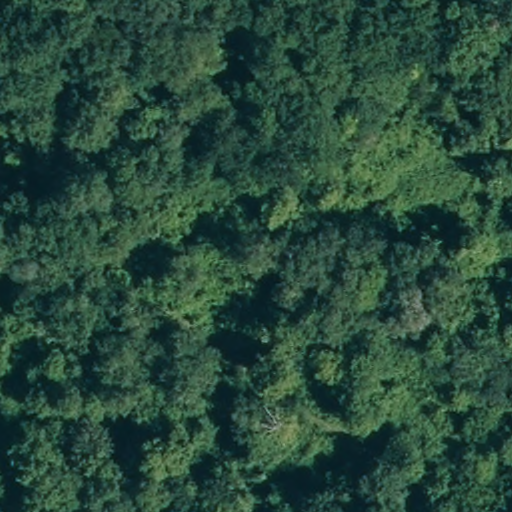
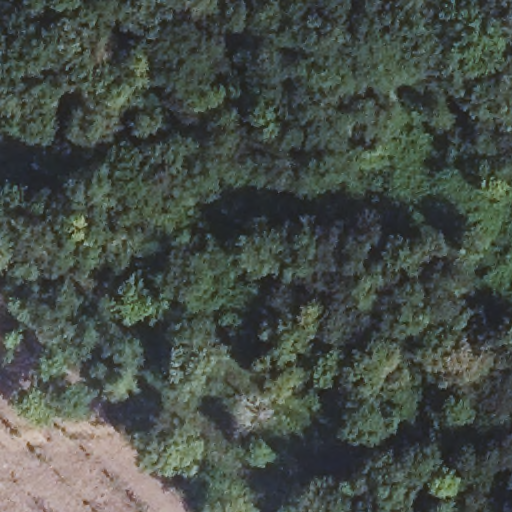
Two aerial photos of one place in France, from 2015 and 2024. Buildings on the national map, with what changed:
unchanged [(0,166),(0,156),(5,161),(0,166)]

